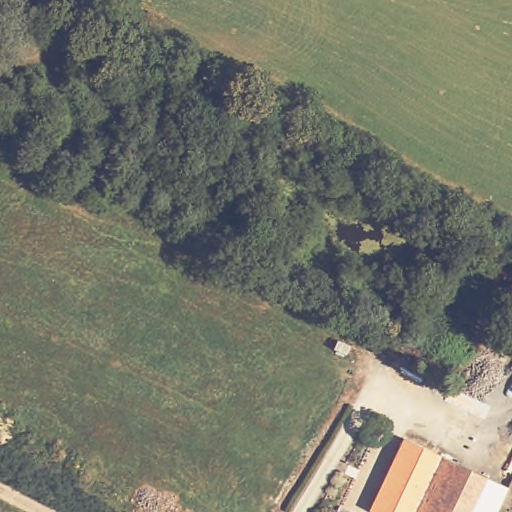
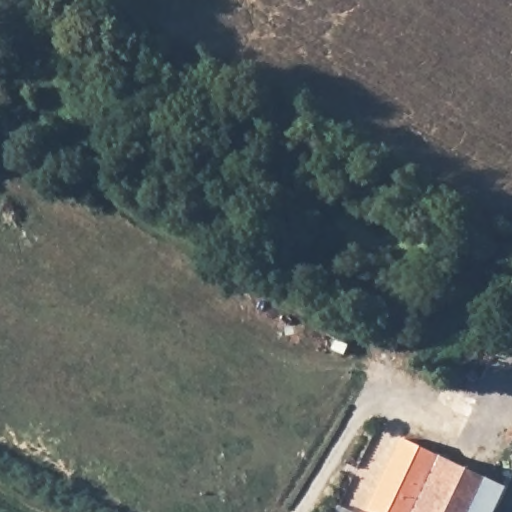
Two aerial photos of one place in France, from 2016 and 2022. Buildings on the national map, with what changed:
unchanged [(457,459),(430,512),(379,512),(417,438),(457,459)]
unchanged [(512,489),(512,501),(507,512),(430,512),(457,459),(512,489)]

